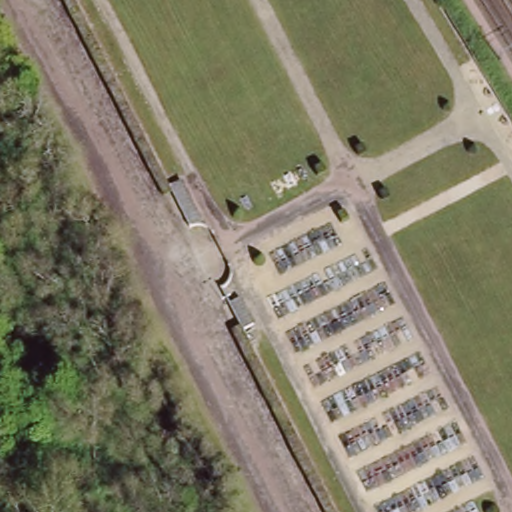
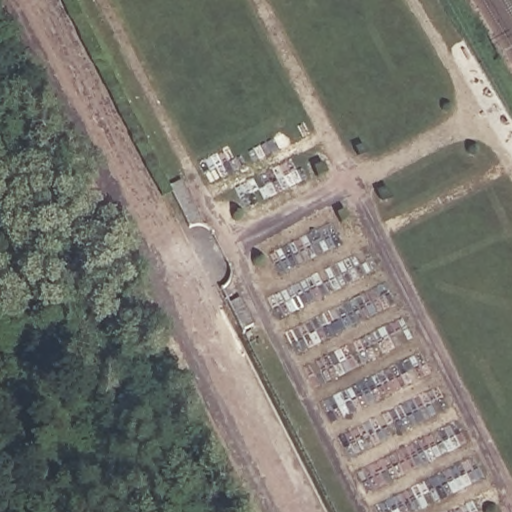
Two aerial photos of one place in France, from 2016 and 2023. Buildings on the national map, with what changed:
unchanged [(187,188),(207,228),(191,227),(174,195),(187,188)]
unchanged [(239,321),(233,311),(246,305),(259,330),(246,336),(239,321)]

